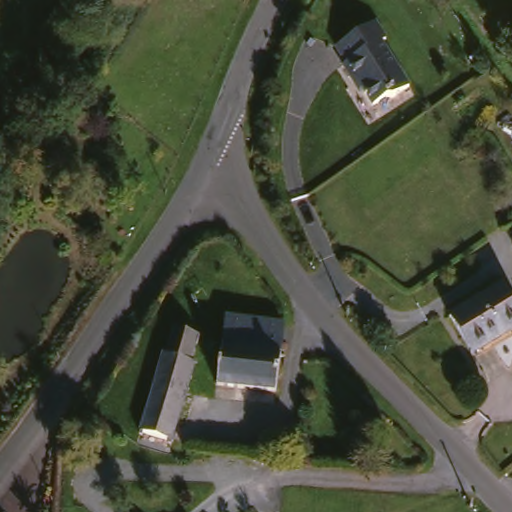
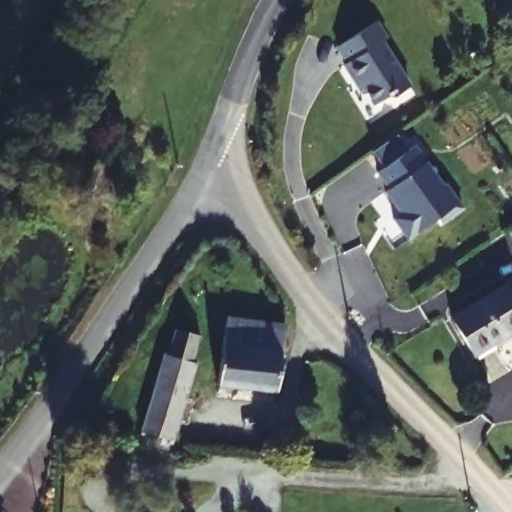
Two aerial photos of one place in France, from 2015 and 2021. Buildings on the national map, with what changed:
unchanged [(384,102),(379,101),(365,108),(352,82),(348,84),(338,65),(341,64),(332,46),(372,25),(382,43),(377,46),(402,93),(384,102)]
new [(381,192),(385,189),(373,173),(410,147),(438,187),(440,185),(458,210),(436,225),(432,219),(403,240),(388,219),(395,213),(391,207),(381,192)]
unchanged [(512,335),(470,360),(446,320),(499,289),(512,310),(512,335)]
unchanged [(211,380),(214,361),(218,337),(222,320),(282,327),(280,350),(276,367),(276,368),(272,392),(253,389),(235,387),(210,384),(211,380)]
unchanged [(189,331),(185,354),(188,355),(179,386),(177,402),(173,415),(168,437),(136,431),(143,404),(148,379),(156,346),(161,347),(165,327),(189,331)]

